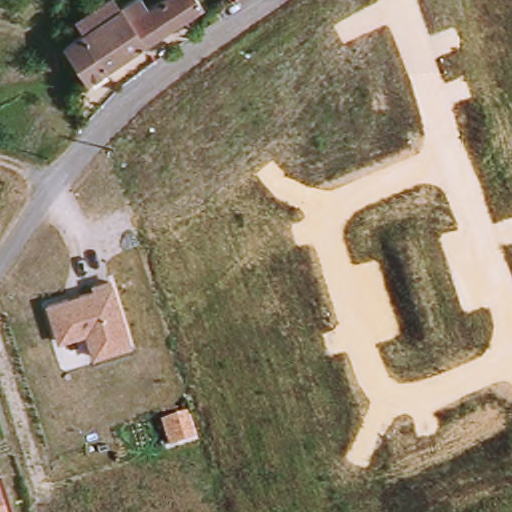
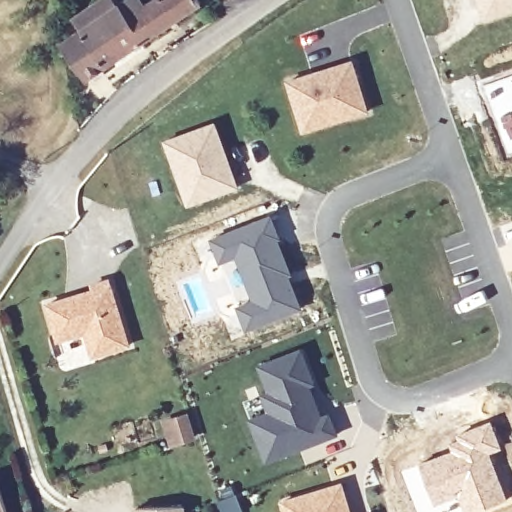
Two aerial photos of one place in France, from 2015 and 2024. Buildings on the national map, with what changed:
unchanged [(158,0),(201,0),(204,5),(147,43),(132,18),(158,0)]
unchanged [(240,2),(238,0),(244,0),(240,2)]
new [(511,9),(486,18),(479,0),(512,0),(512,9),(511,9)]
unchanged [(147,43),(92,79),(68,43),(81,35),(71,22),(100,2),(109,16),(124,6),(132,18),(147,43)]
new [(287,81),(352,60),(368,111),(302,132),(287,81)]
new [(183,188),(166,140),(215,122),(237,185),(212,194),(189,202),(183,188)]
new [(272,214),(280,234),(302,308),(245,332),(234,307),(250,300),(234,259),(219,265),(209,240),(272,214)]
unchanged [(94,289),(92,281),(114,275),(134,347),(92,359),(86,334),(58,342),(47,302),(94,289)]
new [(312,383),(307,385),(321,418),(328,415),(336,434),(267,461),(243,402),(269,392),(260,367),(299,350),(312,383)]
unchanged [(190,409),(200,438),(172,447),(164,419),(190,409)]
new [(448,440),(492,420),(503,449),(491,454),(509,499),(481,512),(464,512),(456,493),(437,503),(420,463),(452,449),(448,440)]
new [(340,484),(349,512),(286,512),(283,501),(340,484)]
unchanged [(0,512),(0,502),(3,512),(0,512)]
new [(186,506),(186,512),(135,512),(135,509),(186,506)]

